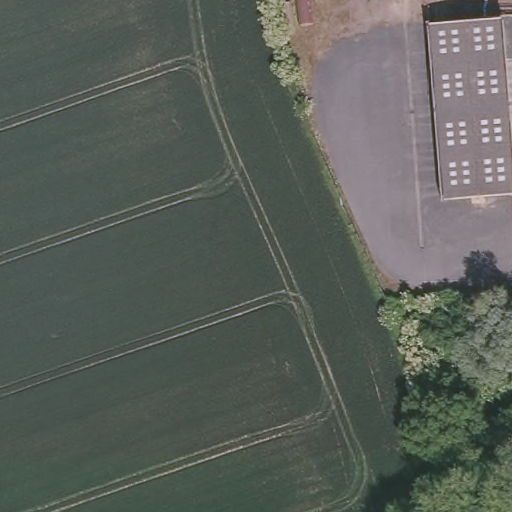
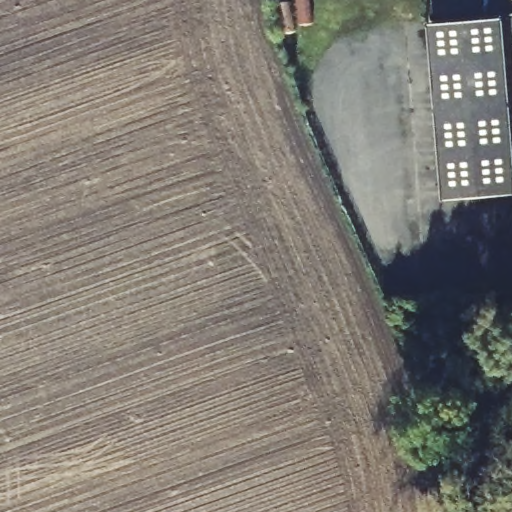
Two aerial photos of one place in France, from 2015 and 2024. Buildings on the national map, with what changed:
unchanged [(501,15),(512,144),(512,191),(441,197),(425,21),(501,15)]

